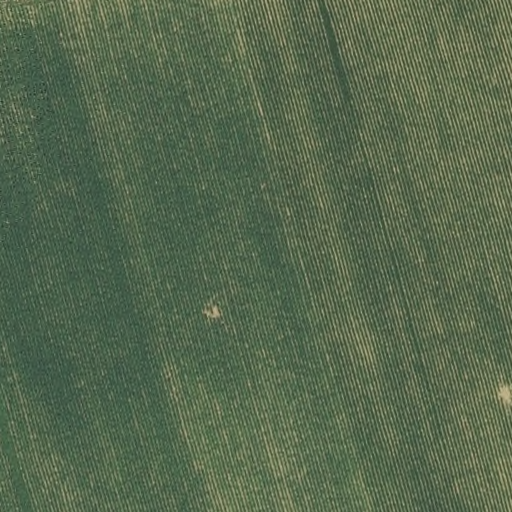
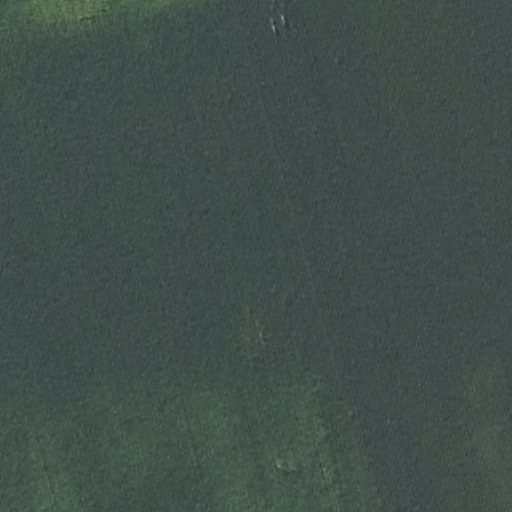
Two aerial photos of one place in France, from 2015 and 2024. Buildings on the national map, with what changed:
[]

